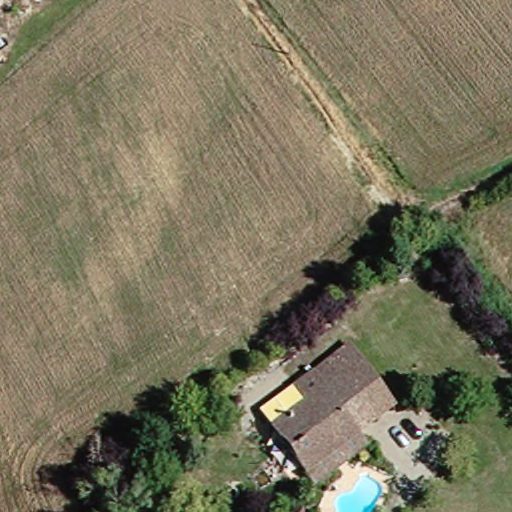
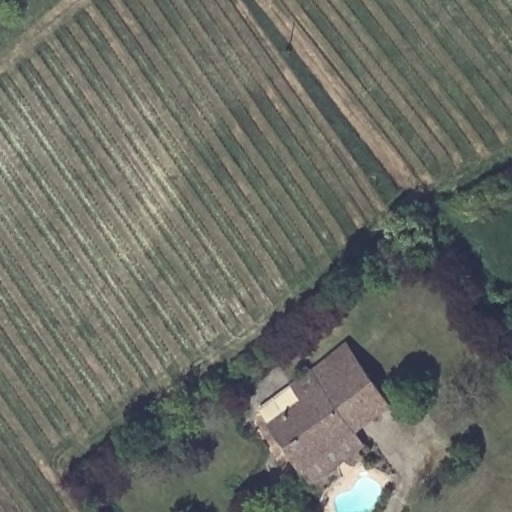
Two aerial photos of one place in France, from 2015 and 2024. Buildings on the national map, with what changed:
unchanged [(311,489),(302,478),(250,419),(333,345),(384,404),(350,433),(352,436),(362,446),(311,489)]

